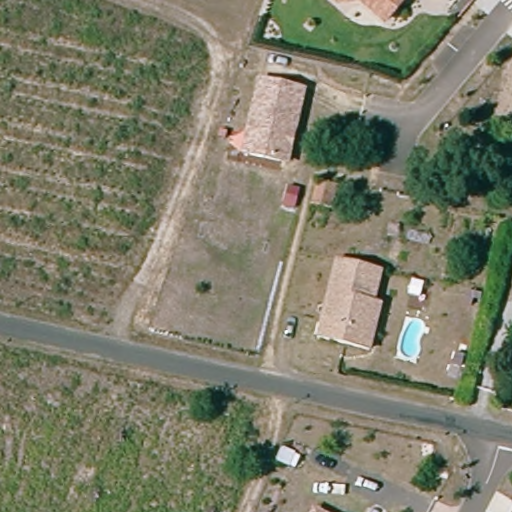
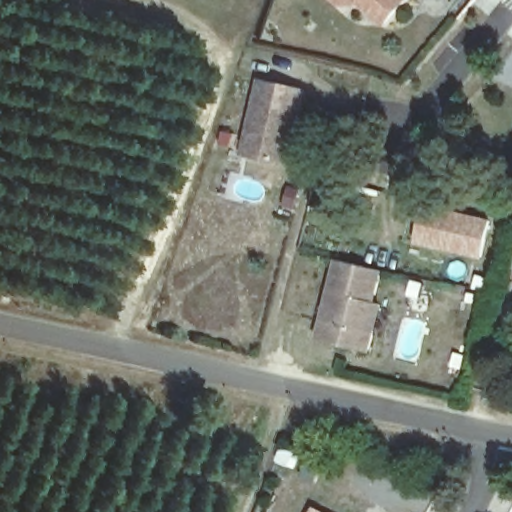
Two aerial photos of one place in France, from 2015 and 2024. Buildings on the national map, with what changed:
unchanged [(388,14),(371,0),(400,0),(388,14)]
unchanged [(290,160),(247,152),(261,81),(304,89),(296,131),(293,146),(290,160)]
unchanged [(289,202),(290,198),(293,187),(294,183),(304,186),(303,189),(300,201),(300,205),(289,202)]
new [(424,205),(492,219),(483,257),(415,242),(424,205)]
unchanged [(375,331),(371,348),(362,346),(320,337),(335,260),(346,262),(379,269),(381,269),(375,302),(380,303),(375,331)]
unchanged [(319,512),(314,512),(315,510),(319,512)]

